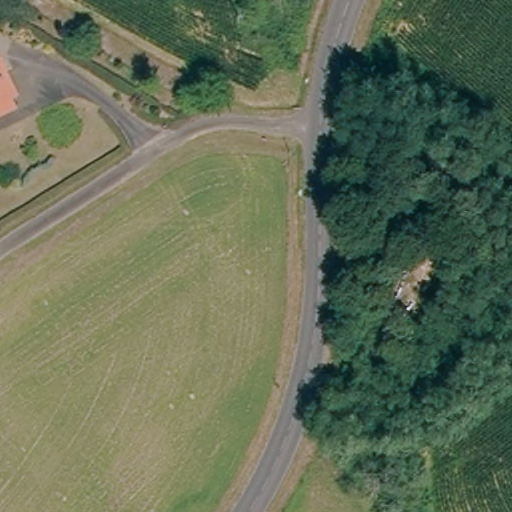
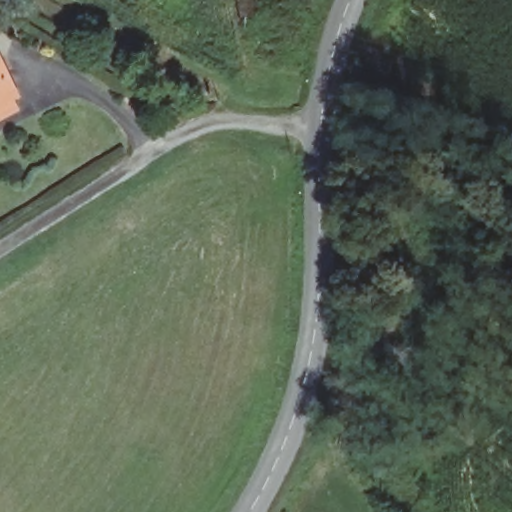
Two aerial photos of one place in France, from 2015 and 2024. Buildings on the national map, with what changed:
unchanged [(0,114),(0,81),(13,108),(0,114)]

